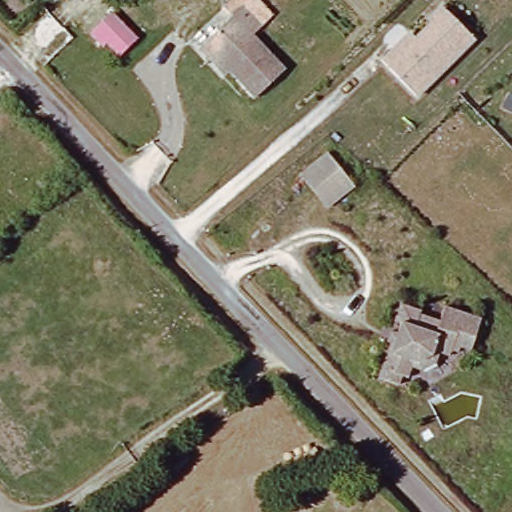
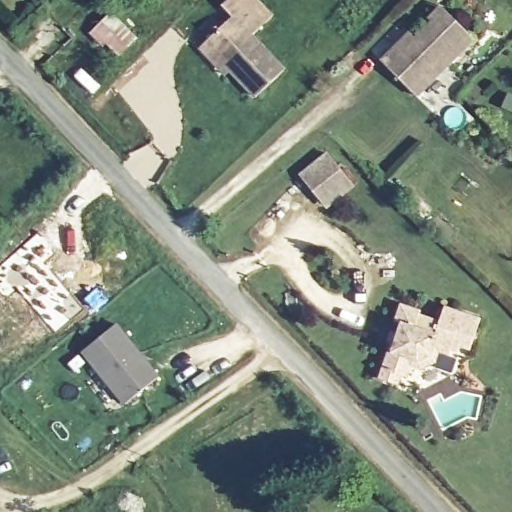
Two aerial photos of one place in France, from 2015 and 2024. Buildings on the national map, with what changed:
unchanged [(201,49),(207,43),(235,19),(231,15),(244,4),(265,28),(255,38),(287,73),(257,99),(234,73),(227,78),(201,49)]
unchanged [(476,39),(416,99),(378,61),(407,30),(413,37),(430,21),(426,16),(438,4),(476,39)]
unchanged [(137,37),(118,57),(106,44),(101,48),(87,35),(110,12),(137,37)]
unchanged [(350,183),(326,204),(300,174),(325,153),(350,183)]
unchanged [(382,363),(391,339),(387,338),(390,329),(397,331),(400,322),(394,320),(400,302),(420,309),(418,313),(431,318),(438,320),(443,305),(479,317),(468,349),(458,346),(457,351),(449,349),(447,355),(438,352),(435,363),(418,370),(410,367),(406,376),(400,375),(396,384),(382,379),(377,378),(382,363)]
new [(80,353),(117,325),(158,378),(122,405),(80,353)]

